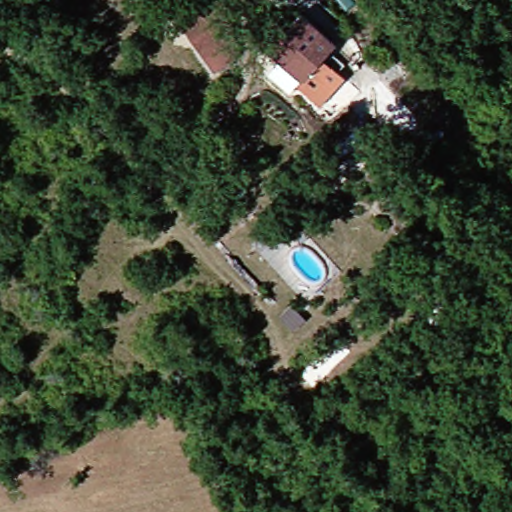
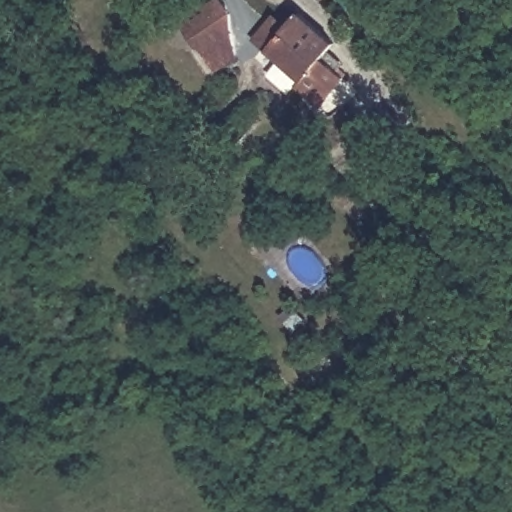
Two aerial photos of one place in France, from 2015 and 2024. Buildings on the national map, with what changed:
unchanged [(317,60),(336,82),(307,105),(288,84),(292,81),(260,43),(293,12),(296,10),(330,47),(317,60)]
unchanged [(216,72),(190,32),(218,15),(244,54),(216,72)]

